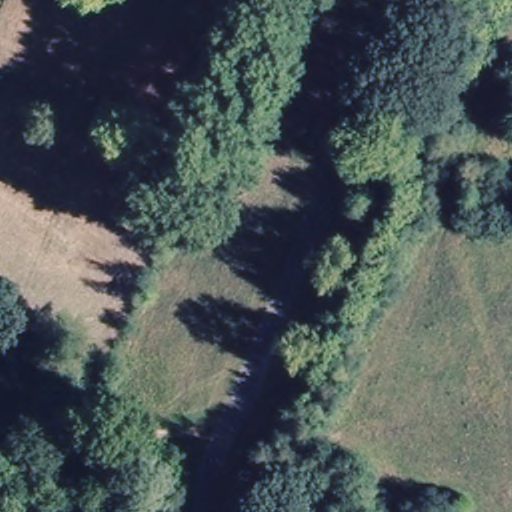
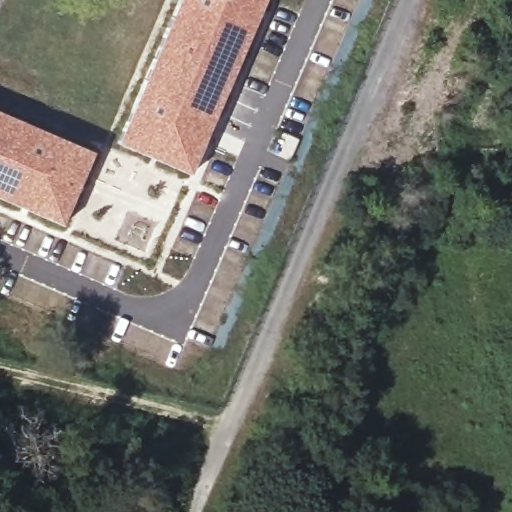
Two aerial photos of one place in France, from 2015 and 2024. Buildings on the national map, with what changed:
new [(179,0),(266,0),(189,175),(117,144),(179,0)]
new [(92,153),(62,224),(0,197),(0,113),(92,153)]

